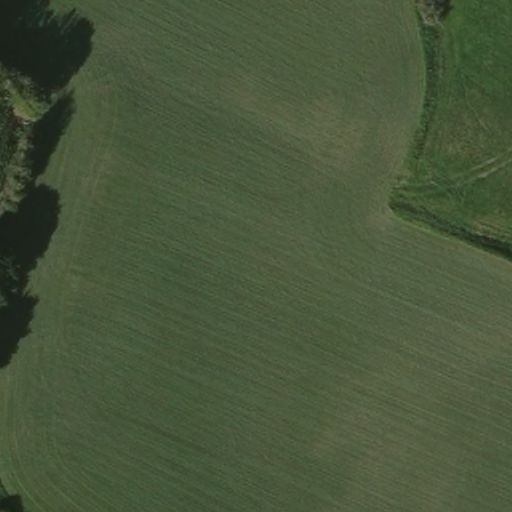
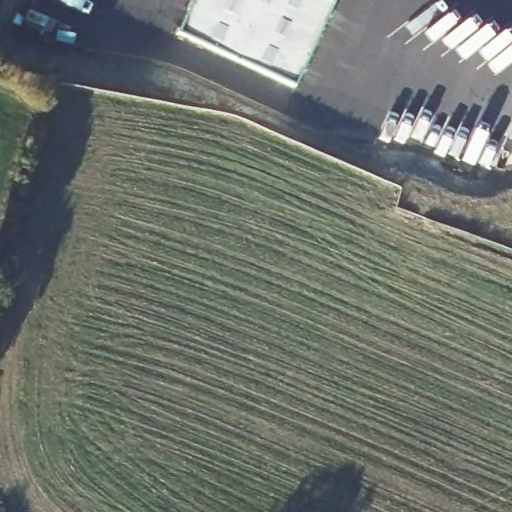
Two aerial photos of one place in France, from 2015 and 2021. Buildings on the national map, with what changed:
new [(196,0),(336,0),(299,86),(180,35),(196,0)]

